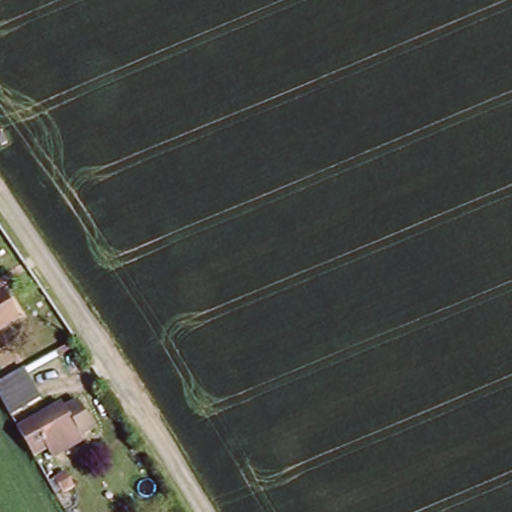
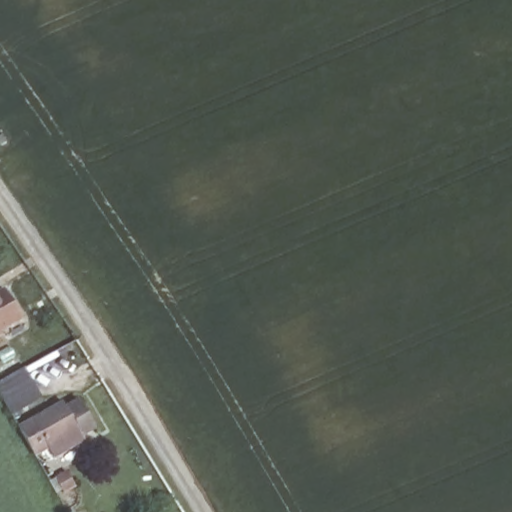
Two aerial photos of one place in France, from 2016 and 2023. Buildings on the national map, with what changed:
unchanged [(25,317),(0,331),(0,291),(8,287),(25,317)]
unchanged [(39,400),(13,414),(0,391),(0,381),(22,369),(39,400)]
unchanged [(63,401),(66,406),(81,398),(96,430),(82,437),(85,441),(49,460),(47,457),(36,464),(15,427),(63,401)]

